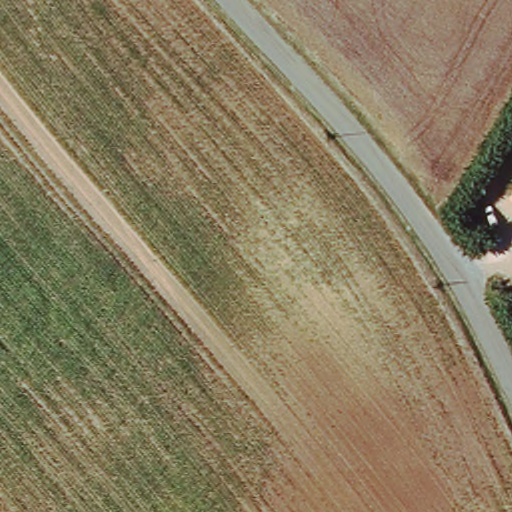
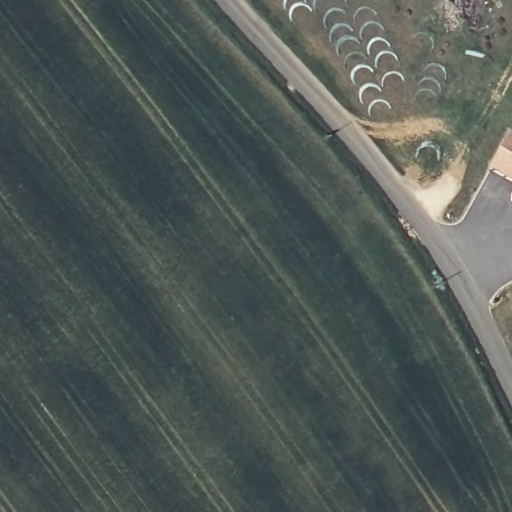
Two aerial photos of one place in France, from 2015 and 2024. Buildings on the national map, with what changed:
new [(512,132),(512,179),(492,168),(512,131),(512,132)]

